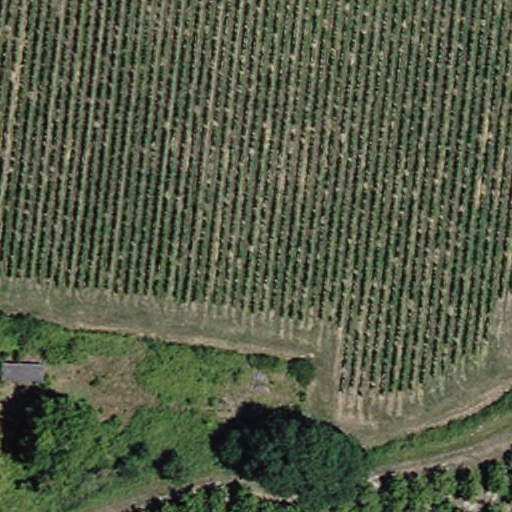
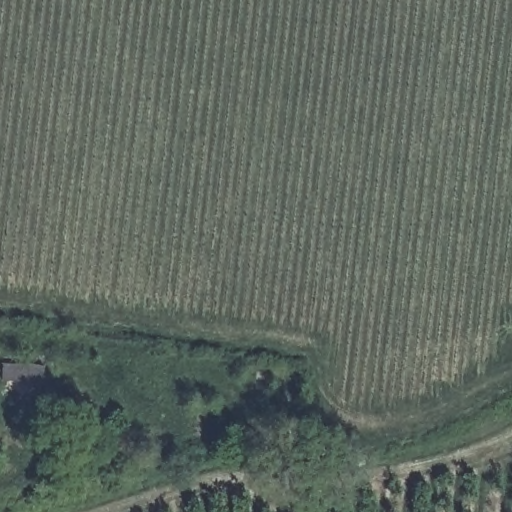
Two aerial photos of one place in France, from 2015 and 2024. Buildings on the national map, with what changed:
unchanged [(40,381),(0,379),(0,363),(41,365),(40,381)]

